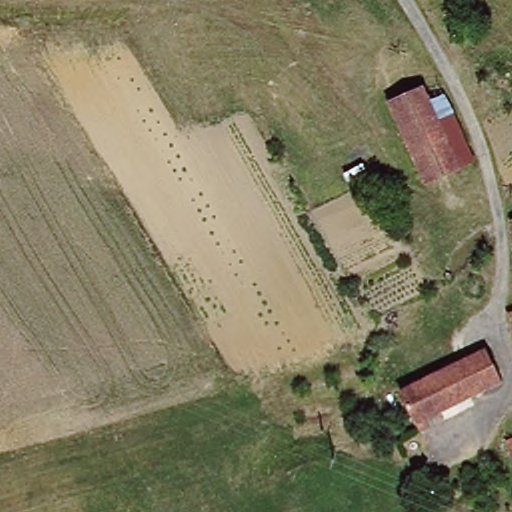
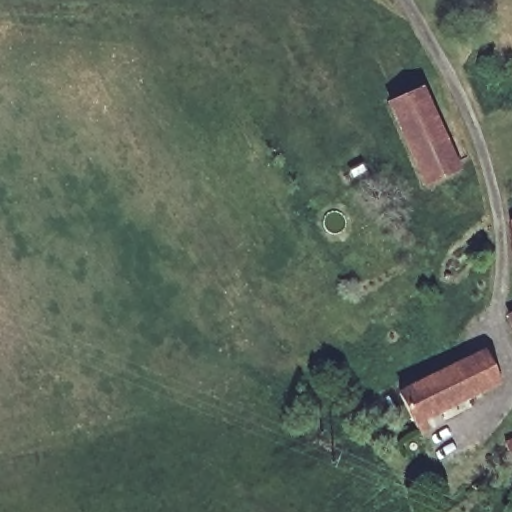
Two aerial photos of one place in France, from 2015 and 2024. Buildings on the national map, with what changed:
unchanged [(443,80),(480,161),(428,185),(390,99),(443,80)]
unchanged [(404,390),(489,355),(503,385),(420,421),(404,390)]

